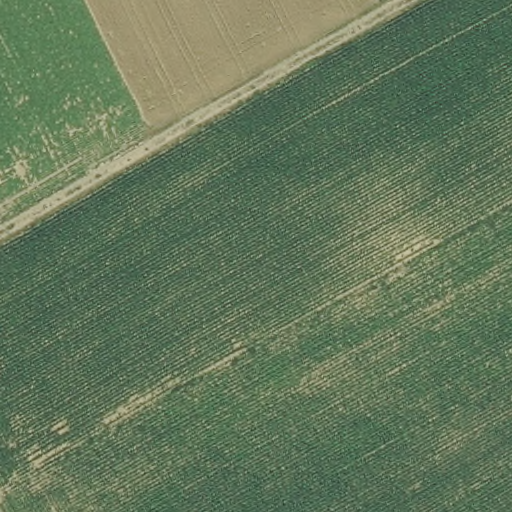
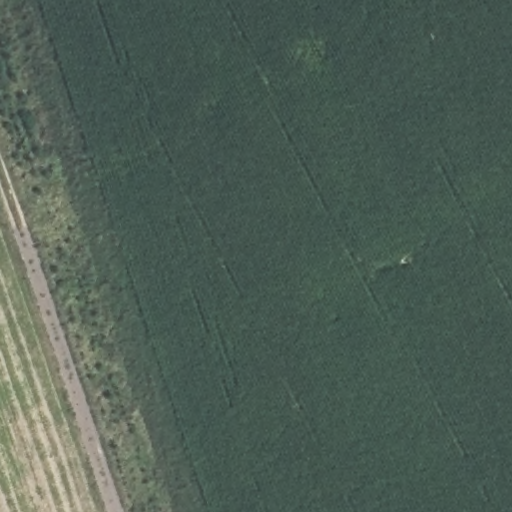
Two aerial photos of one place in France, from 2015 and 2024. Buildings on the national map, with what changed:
[]

